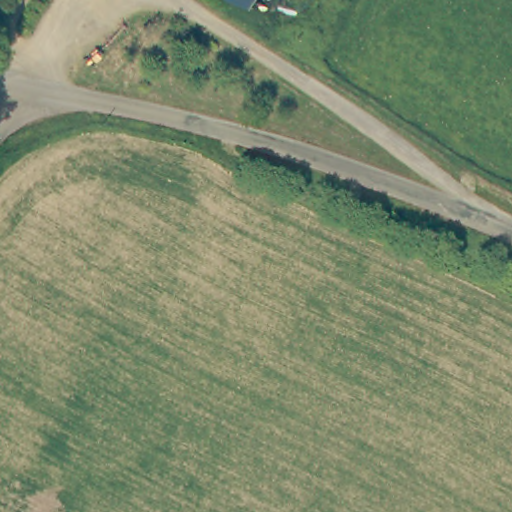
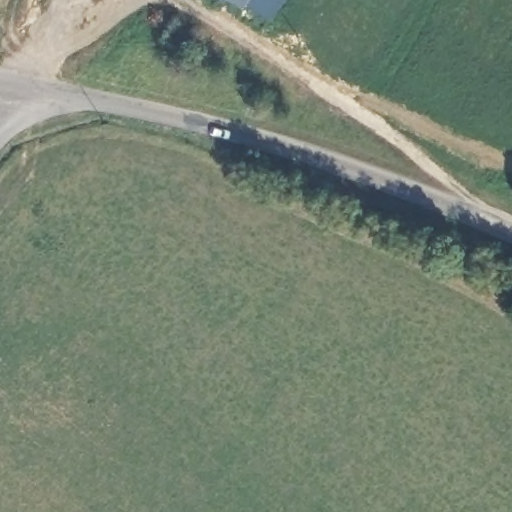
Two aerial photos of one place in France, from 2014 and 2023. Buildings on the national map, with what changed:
unchanged [(235,0),(249,0),(245,5),(235,0)]
new [(245,5),(249,0),(285,0),(270,20),(245,5)]

